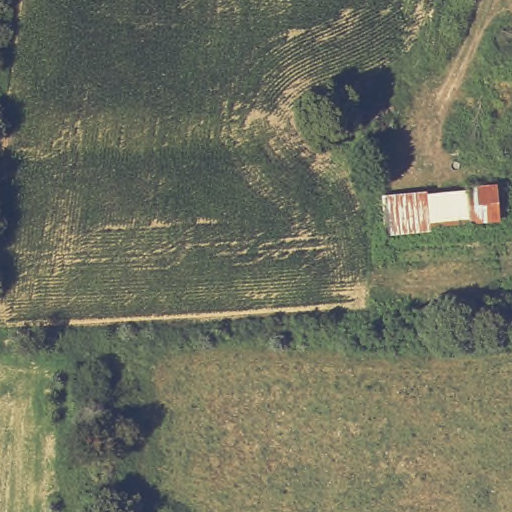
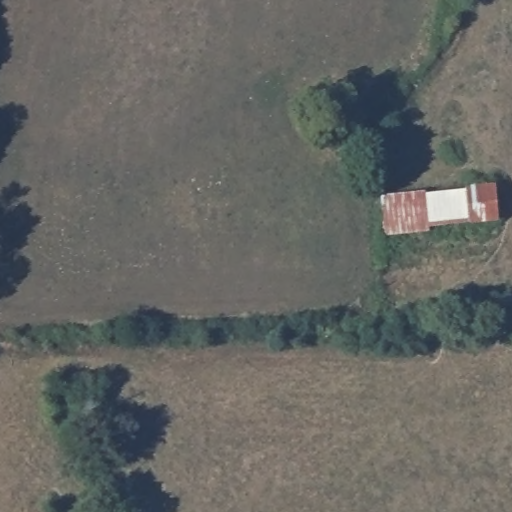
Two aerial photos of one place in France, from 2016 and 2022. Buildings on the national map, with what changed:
unchanged [(465,187),(495,185),(499,219),(467,222),(466,218),(464,190),(465,187)]
unchanged [(427,222),(425,193),(464,190),(466,218),(427,222)]

